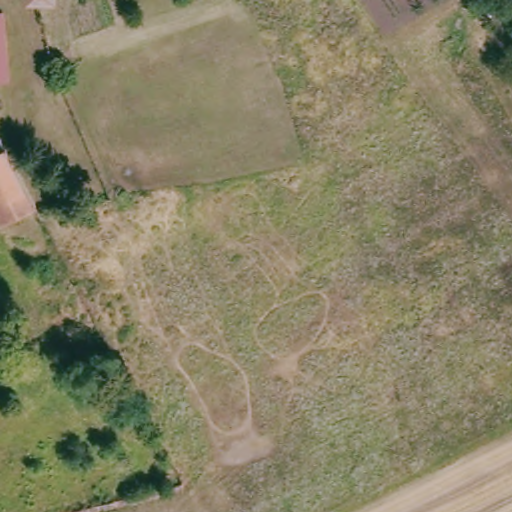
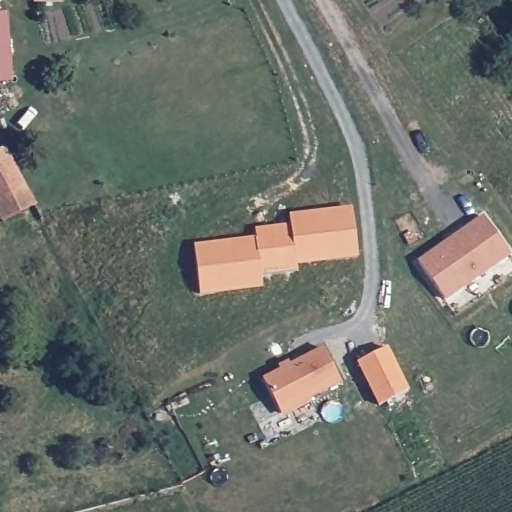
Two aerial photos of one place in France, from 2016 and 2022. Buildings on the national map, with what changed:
unchanged [(56,21),(33,20),(34,0),(57,0),(57,15),(56,21)]
unchanged [(3,80),(0,80),(0,36),(3,80)]
unchanged [(30,194),(0,211),(0,161),(10,156),(30,194)]
new [(359,254),(297,262),(298,269),(262,274),(263,285),(201,292),(195,245),(258,237),(257,229),(292,225),(291,215),(353,207),(359,254)]
new [(418,262),(484,217),(511,257),(446,301),(418,262)]
new [(310,400),(312,404),(284,417),(264,380),(323,349),(341,384),(310,400)]
new [(379,406),(360,364),(388,350),(408,391),(379,406)]

